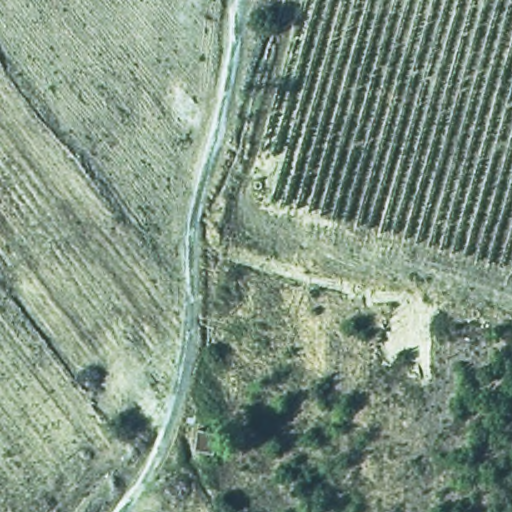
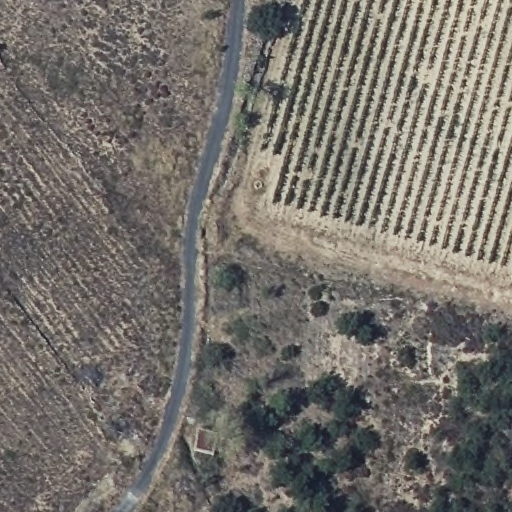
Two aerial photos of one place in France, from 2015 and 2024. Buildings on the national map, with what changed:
unchanged [(219,430),(219,451),(200,450),(200,428),(219,430)]

